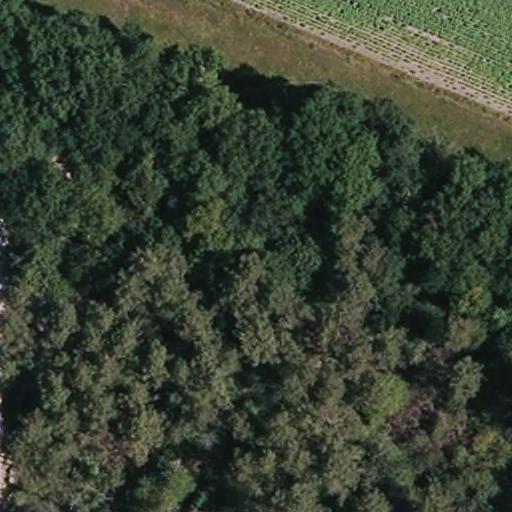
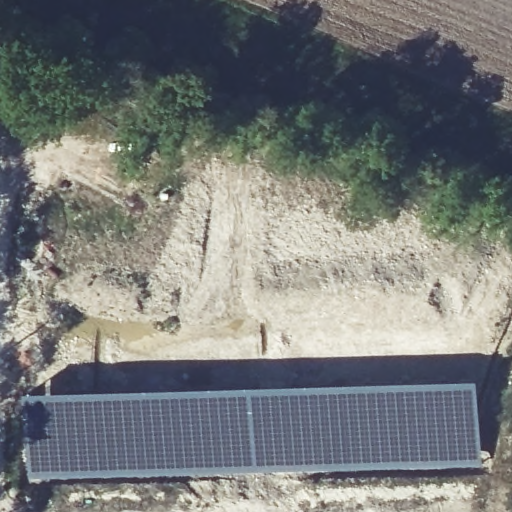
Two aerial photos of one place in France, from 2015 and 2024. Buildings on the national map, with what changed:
new [(345,380),(482,378),(482,466),(422,465),(262,469),(157,475),(30,478),(27,389),(345,380)]

